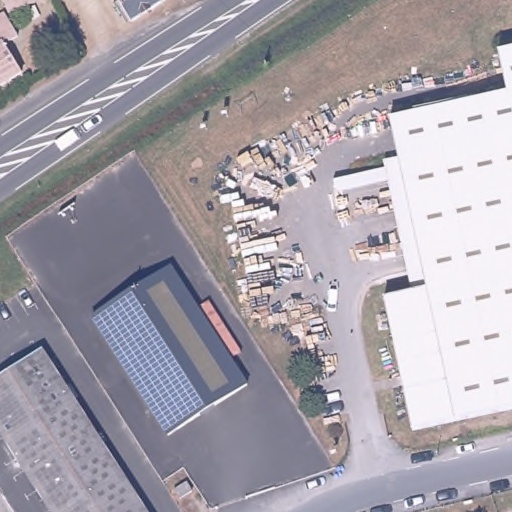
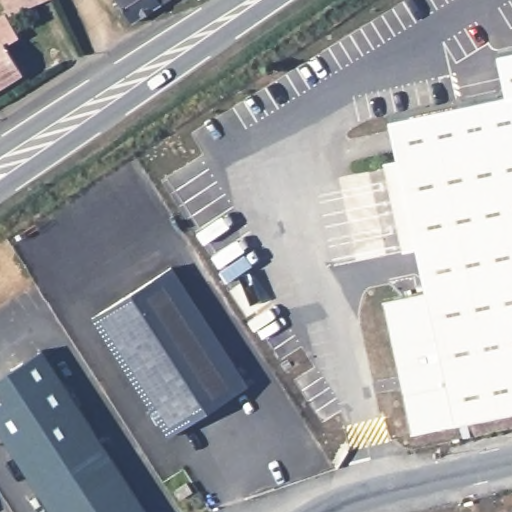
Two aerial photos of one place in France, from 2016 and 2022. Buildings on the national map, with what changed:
unchanged [(4,0),(54,0),(10,16),(4,0)]
unchanged [(129,0),(170,0),(138,15),(129,0)]
unchanged [(19,40),(9,46),(21,70),(0,83),(0,18),(4,15),(19,40)]
unchanged [(507,52),(512,51),(512,81),(507,52)]
unchanged [(389,296),(431,287),(397,117),(512,94),(512,407),(416,427),(407,383),(405,373),(389,296)]
unchanged [(176,270),(253,388),(174,440),(98,321),(176,270)]
unchanged [(150,512),(54,512),(0,428),(0,377),(44,348),(150,512)]

